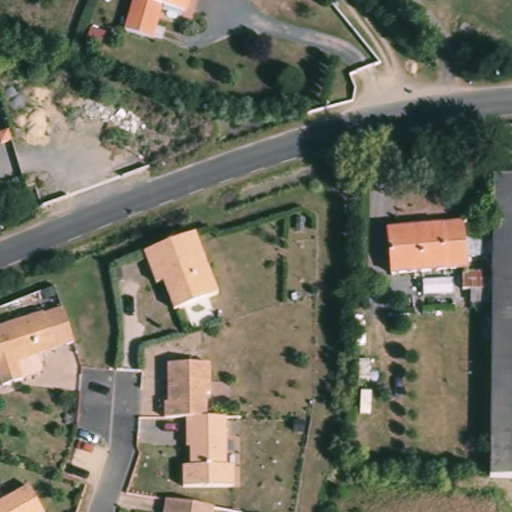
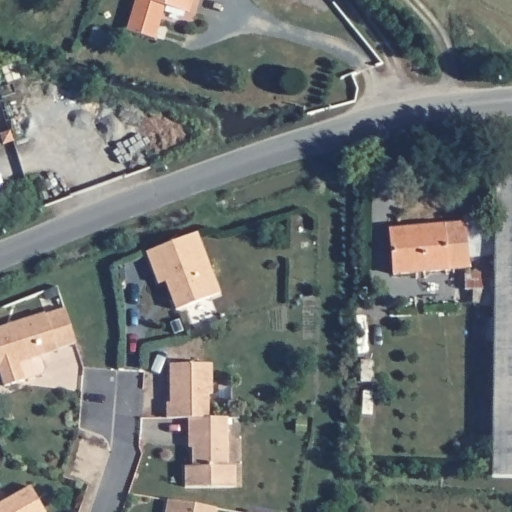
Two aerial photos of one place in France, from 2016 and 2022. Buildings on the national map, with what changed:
unchanged [(190,19),(168,12),(158,45),(130,37),(140,5),(144,5),(146,0),(196,0),(190,19)]
unchanged [(104,36),(100,49),(87,45),(91,32),(104,36)]
unchanged [(512,183),(512,482),(495,482),(496,294),(469,294),(468,278),(496,278),(497,183),(512,183)]
unchanged [(467,229),(471,272),(396,279),(392,235),(467,229)]
unchanged [(168,283),(161,286),(149,254),(200,235),(223,296),(179,312),(176,303),(172,294),(168,283)]
unchanged [(38,321),(58,315),(69,350),(50,356),(50,357),(33,362),(37,376),(35,381),(17,386),(0,392),(0,332),(38,320),(38,321)]
unchanged [(188,420),(186,420),(175,420),(165,420),(165,402),(169,402),(169,364),(211,363),(211,396),(208,396),(208,420),(188,420)]
unchanged [(224,420),(225,468),(233,468),(233,489),(183,489),(183,469),(190,469),(190,437),(186,437),(186,420),(188,420),(208,420),(224,420)]
unchanged [(43,512),(0,512),(0,510),(32,493),(43,512)]
unchanged [(169,512),(170,501),(187,504),(218,510),(218,512),(169,512)]

